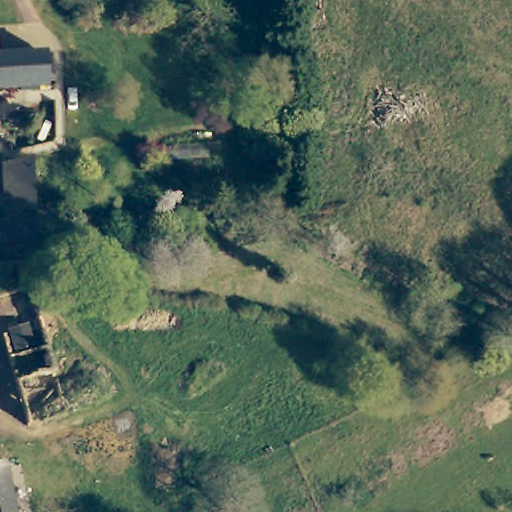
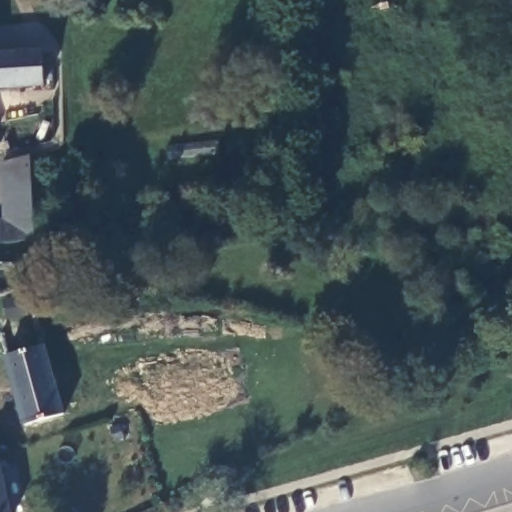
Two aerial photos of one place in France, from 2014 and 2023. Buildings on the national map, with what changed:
unchanged [(45,55),(47,87),(0,89),(0,57),(45,55)]
unchanged [(39,245),(0,250),(0,227),(5,226),(0,173),(0,163),(34,160),(36,240),(43,243),(39,245)]
new [(25,425),(0,341),(0,333),(40,321),(52,371),(62,415),(25,425)]
demolished [(64,421),(26,430),(7,361),(46,351),(64,421)]
unchanged [(6,472),(12,512),(0,512),(0,472),(6,472)]

